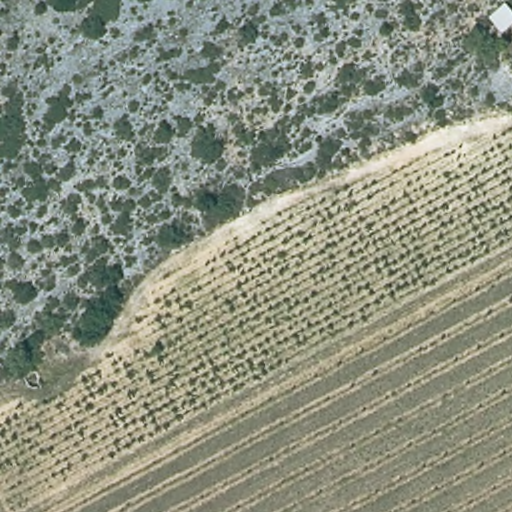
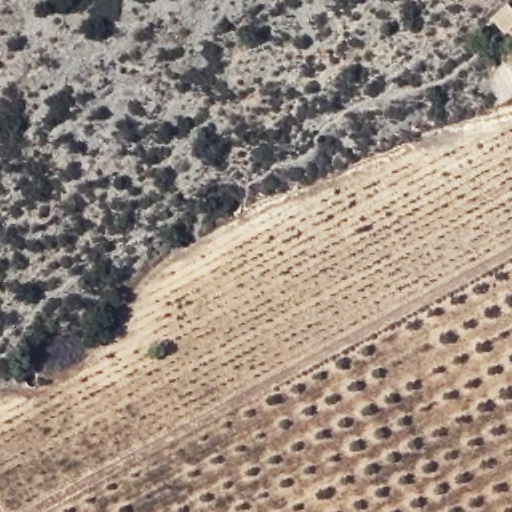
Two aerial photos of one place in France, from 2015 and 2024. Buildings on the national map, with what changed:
unchanged [(507,4),(512,10),(512,29),(502,36),(490,19),(507,4)]

